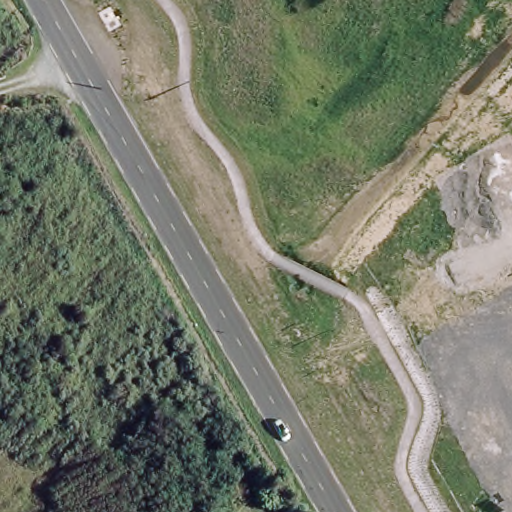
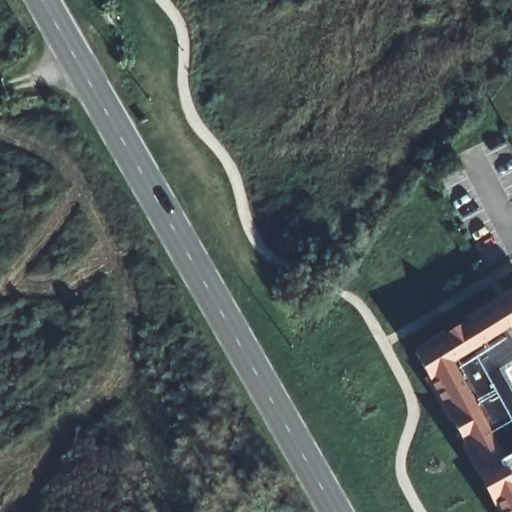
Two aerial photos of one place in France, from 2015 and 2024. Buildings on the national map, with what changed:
new [(507,368),(512,377),(512,512),(502,512),(415,345),(512,288),(512,365),(507,368)]

